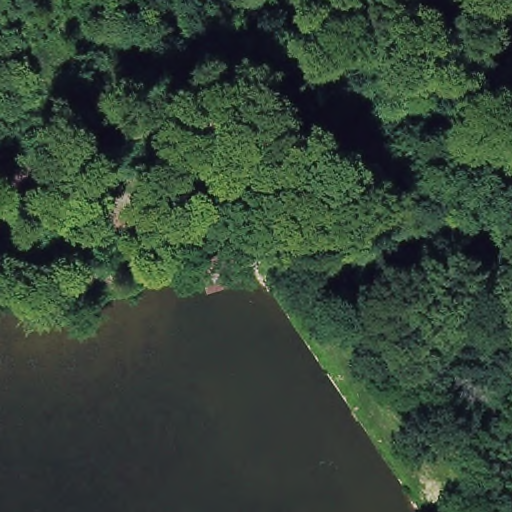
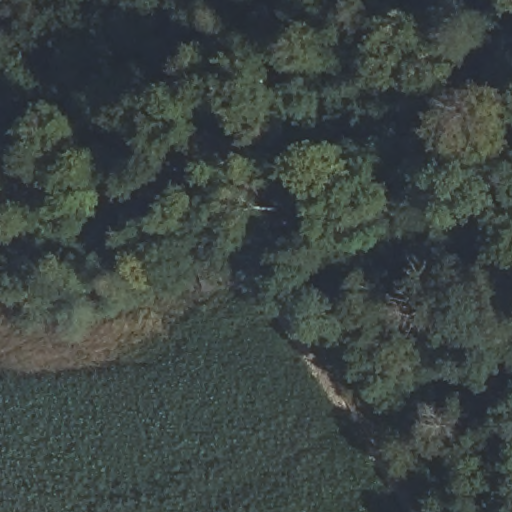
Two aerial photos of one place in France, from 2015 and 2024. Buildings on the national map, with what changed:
unchanged [(200,262),(236,250),(247,284),(209,295),(200,262)]

